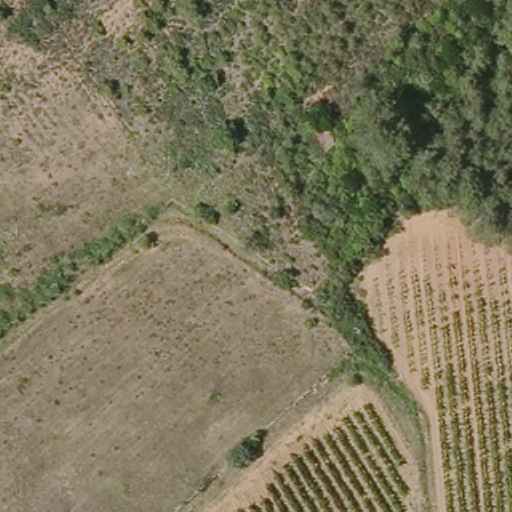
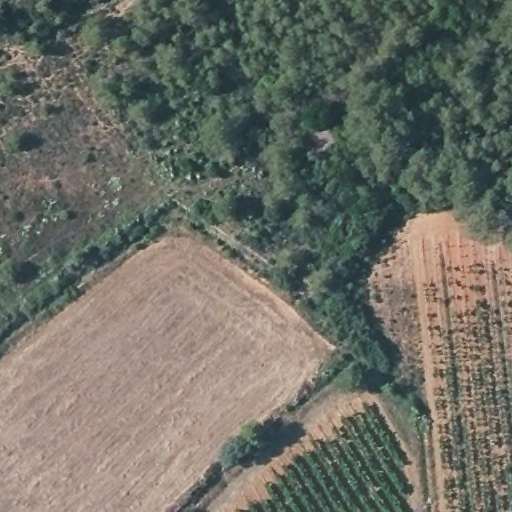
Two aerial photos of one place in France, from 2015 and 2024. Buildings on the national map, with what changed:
unchanged [(323,131),(337,149),(322,162),(309,143),(323,131)]

